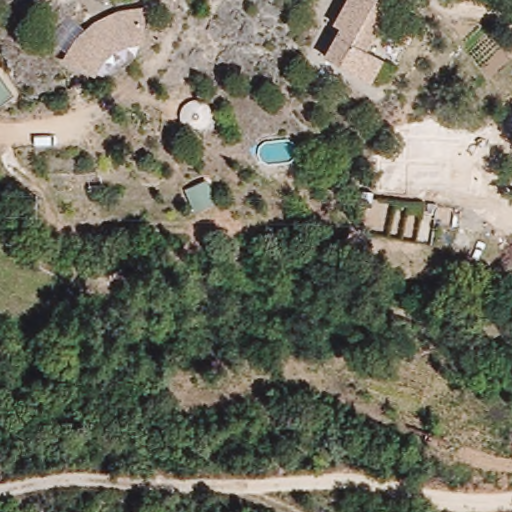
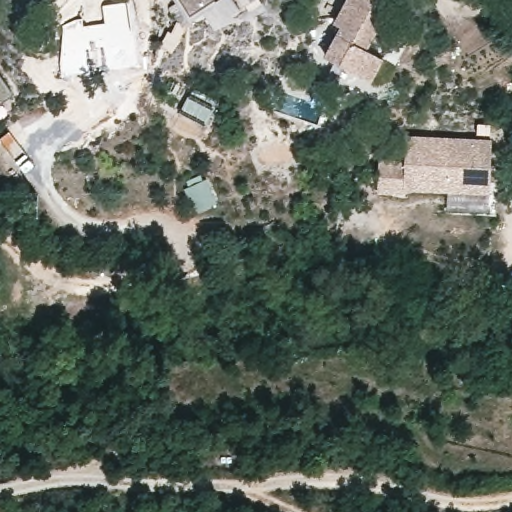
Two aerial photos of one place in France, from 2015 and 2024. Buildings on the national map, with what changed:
new [(189,18),(177,0),(216,0),(201,11),(189,18)]
new [(260,0),(264,5),(248,15),(246,13),(216,31),(201,11),(216,0),(260,0)]
unchanged [(347,0),(384,0),(396,8),(366,53),(381,64),(367,86),(321,53),(338,26),(334,22),(347,0)]
unchanged [(87,67),(63,55),(78,32),(95,21),(109,14),(131,10),(133,16),(133,39),(123,41),(108,46),(100,51),(87,67)]
unchanged [(0,102),(0,74),(13,94),(0,102)]
new [(492,139),(492,193),(405,192),(405,196),(378,194),(378,161),(406,162),(406,136),(492,139)]

